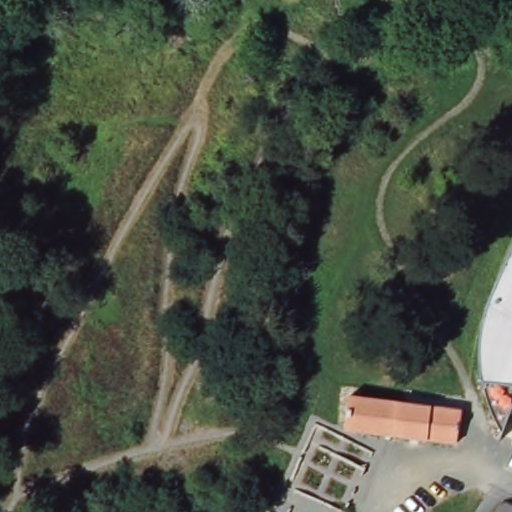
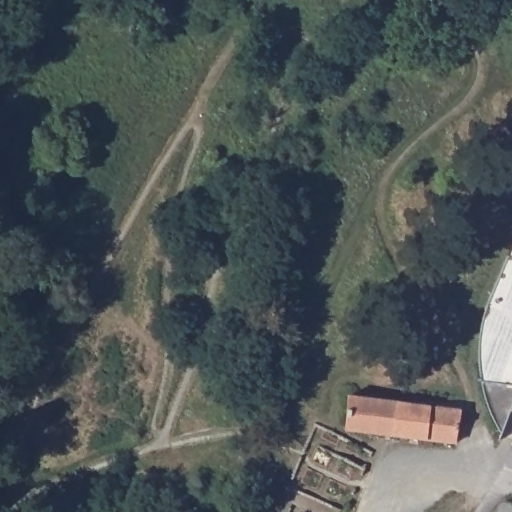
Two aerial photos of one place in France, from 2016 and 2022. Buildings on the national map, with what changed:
unchanged [(483,379),(483,333),(492,299),(512,250),(512,386),(483,379)]
unchanged [(463,406),(458,437),(347,424),(350,390),(463,406)]
unchanged [(262,498),(277,473),(287,479),(315,417),(374,446),(347,508),(300,488),(287,512),(273,512),(261,501),(262,498)]
unchanged [(507,500),(512,503),(512,512),(496,512),(501,503),(507,500)]

